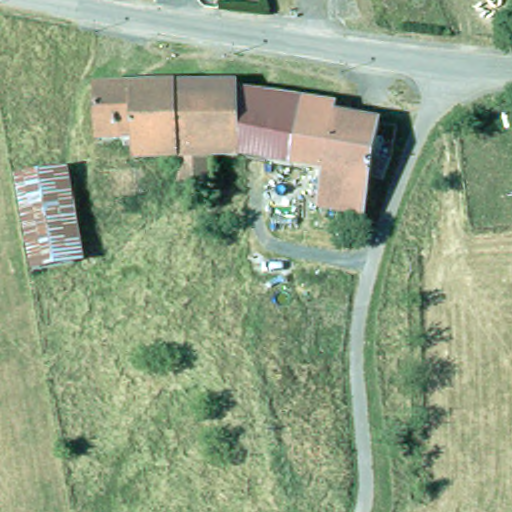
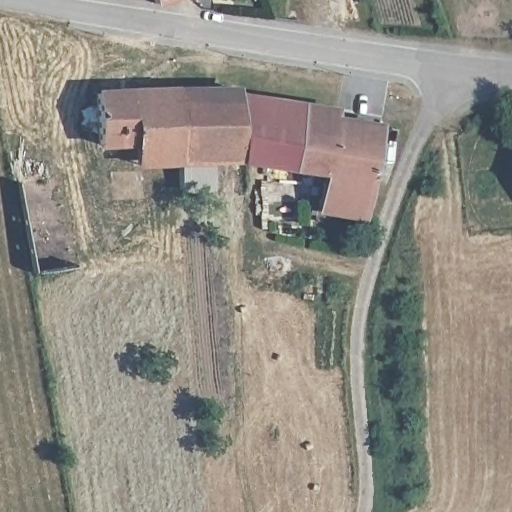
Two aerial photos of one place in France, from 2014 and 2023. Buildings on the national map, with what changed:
unchanged [(160,7),(157,0),(183,0),(162,7),(160,7)]
unchanged [(238,91),(238,94),(242,164),(213,164),(213,191),(180,194),(180,176),(179,151),(177,92),(238,91)]
unchanged [(135,152),(105,154),(107,97),(169,95),(168,92),(177,92),(179,151),(135,152)]
unchanged [(305,98),(292,165),(267,161),(264,161),(247,164),(242,164),(238,94),(243,94),(277,93),(305,98)]
unchanged [(375,179),(370,212),(318,202),(324,170),(292,165),(305,98),(341,104),(340,114),(400,125),(397,149),(387,181),(375,179)]
unchanged [(135,152),(179,151),(180,176),(136,177),(135,152)]
unchanged [(23,184),(64,177),(79,267),(38,275),(23,184)]

